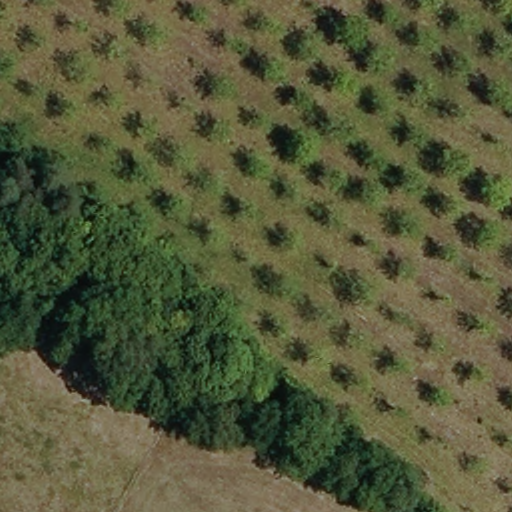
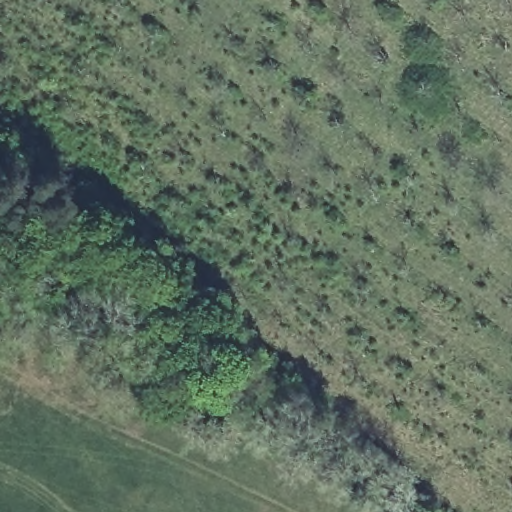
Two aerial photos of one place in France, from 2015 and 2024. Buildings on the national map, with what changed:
[]

